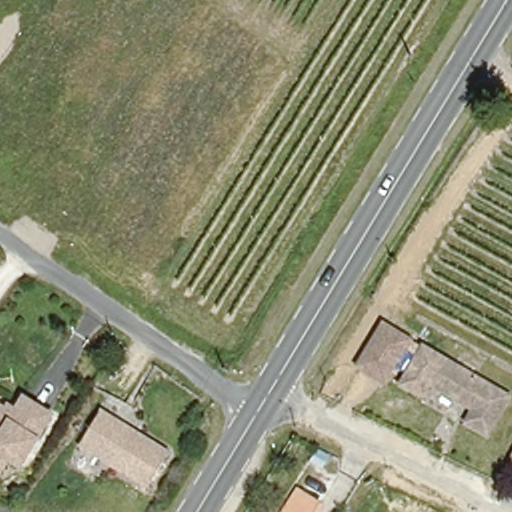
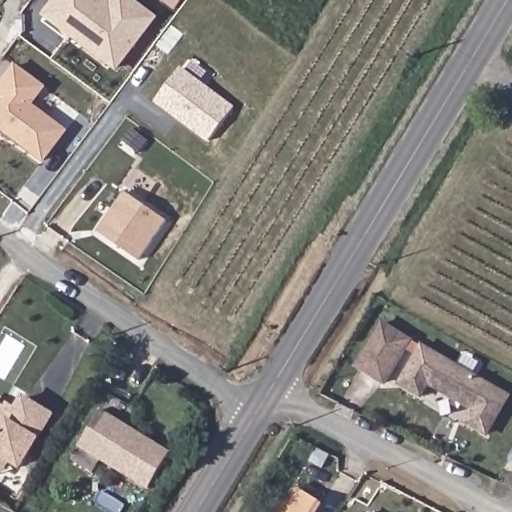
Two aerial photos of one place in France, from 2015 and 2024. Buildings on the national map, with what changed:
new [(116,0),(130,0),(154,17),(116,68),(47,15),(59,0),(102,0),(111,6),(116,0)]
new [(44,87),(31,105),(65,131),(44,160),(3,130),(0,133),(0,103),(8,91),(2,86),(16,67),(44,87)]
new [(233,108),(209,140),(157,102),(180,70),(233,108)]
new [(8,91),(2,100),(0,99),(0,89),(2,86),(8,91)]
new [(166,220),(138,260),(98,233),(126,193),(166,220)]
unchanged [(138,304),(135,308),(132,306),(134,302),(138,304)]
unchanged [(440,385),(433,397),(415,386),(431,358),(419,351),(397,385),(370,369),(396,326),(482,376),(512,395),(512,410),(496,435),(478,425),(485,412),(440,385)]
unchanged [(14,413),(24,396),(51,413),(20,465),(7,457),(0,470),(0,405),(14,413)]
unchanged [(102,408),(169,449),(147,486),(80,445),(102,408)]
unchanged [(512,437),(512,440),(511,439),(512,437)]
unchanged [(316,498),(308,512),(275,512),(292,484),(316,498)]

